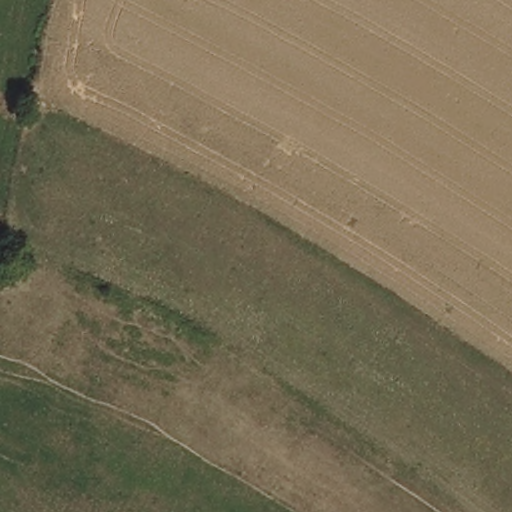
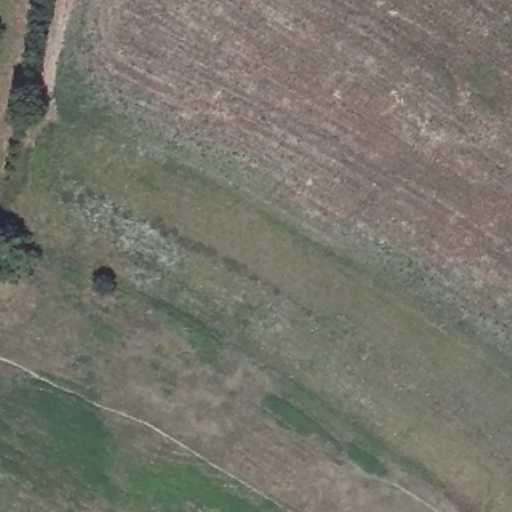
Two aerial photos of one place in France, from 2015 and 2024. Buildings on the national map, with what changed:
[]

